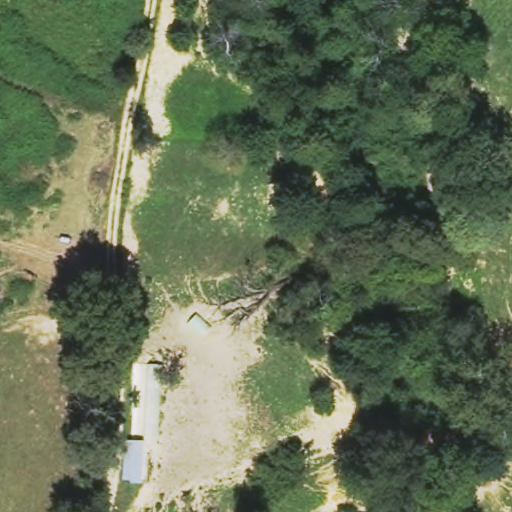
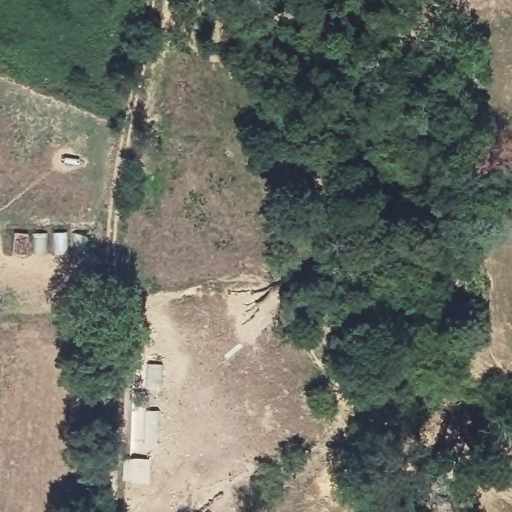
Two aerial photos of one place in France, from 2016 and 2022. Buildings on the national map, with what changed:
unchanged [(128,437),(148,438),(145,482),(125,482),(128,437)]

